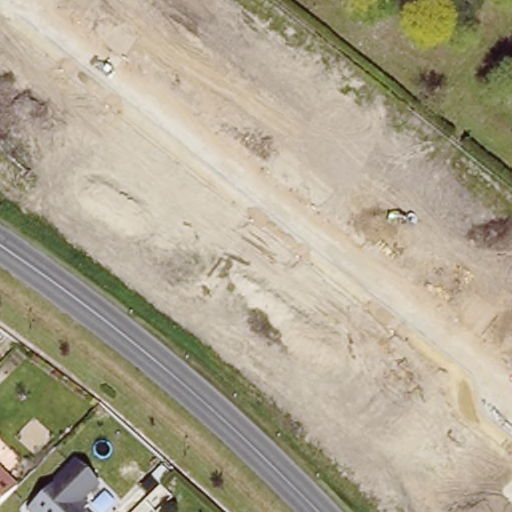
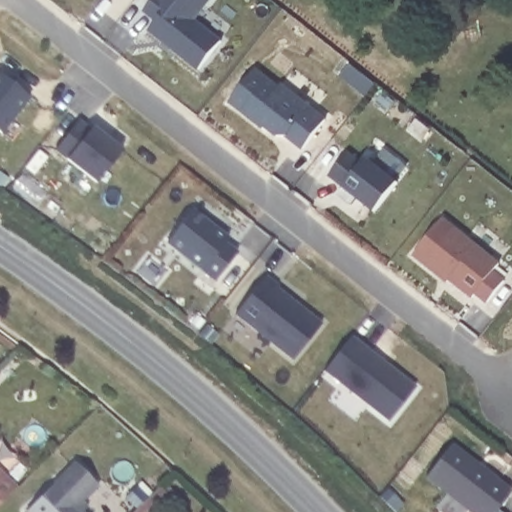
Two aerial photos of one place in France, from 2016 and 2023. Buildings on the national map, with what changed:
new [(154,31),(162,21),(149,11),(158,0),(215,0),(200,20),(227,42),(204,70),(175,48),(168,42),(154,31)]
new [(258,121),(231,99),(257,67),(280,86),(283,82),(327,118),(305,147),(288,134),(279,134),(267,124),(265,126),(258,121)]
new [(32,95),(3,131),(0,129),(0,70),(32,95)]
new [(81,118),(92,127),(95,125),(125,148),(99,181),(57,148),(81,118)]
new [(350,150),(365,162),(368,156),(400,181),(377,210),(359,196),(354,203),(340,192),(345,186),(331,174),(350,150)]
new [(194,208),(211,221),(210,223),(228,237),(225,242),(237,251),(215,281),(166,243),(194,208)]
new [(442,275),(415,254),(445,217),(502,262),(495,270),(507,279),(490,301),(478,292),(475,296),(452,278),(450,281),(442,275)]
new [(268,274),(280,284),(279,286),(325,322),(296,358),(238,312),(268,274)]
new [(350,336),(415,386),(388,421),(322,369),(350,336)]
new [(480,463),(478,465),(490,474),(492,472),(512,488),(512,493),(497,512),(476,512),(429,475),(455,443),(480,463)]
unchanged [(0,498),(0,469),(15,483),(0,498)]
unchanged [(62,472),(102,512),(39,512),(32,504),(62,472)]

